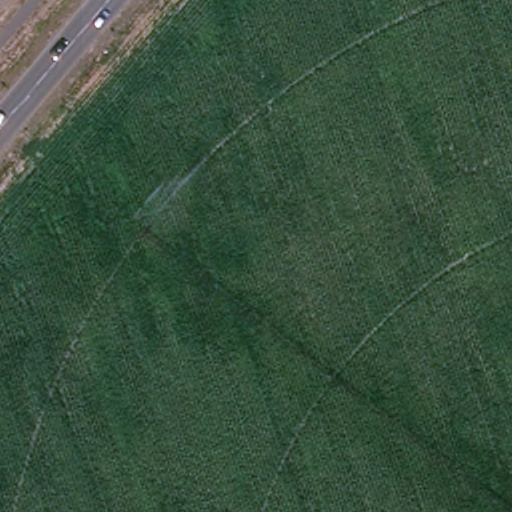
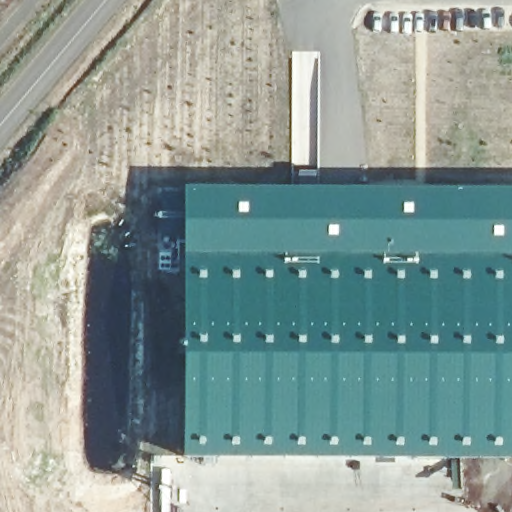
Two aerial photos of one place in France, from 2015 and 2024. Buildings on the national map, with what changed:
new [(183,184),(276,185),(295,184),(296,169),(317,169),(316,184),(512,186),(512,459),(396,460),(182,457),(180,338),(181,245),(183,184)]

